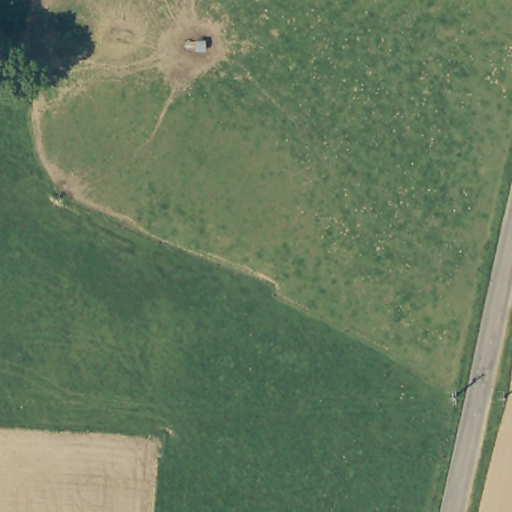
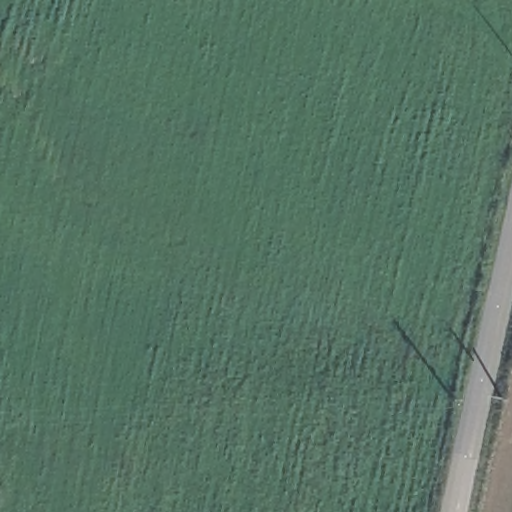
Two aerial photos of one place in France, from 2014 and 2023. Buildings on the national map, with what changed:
[]

